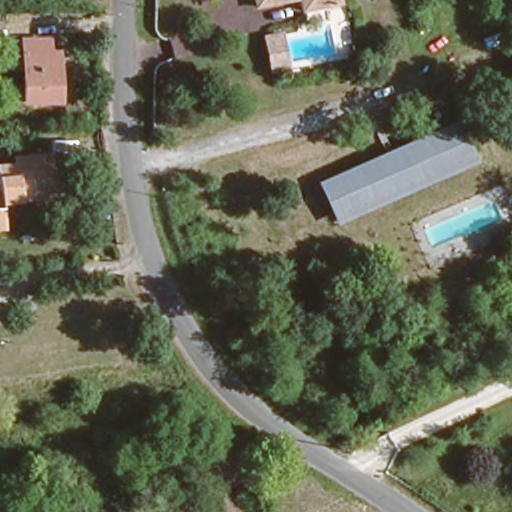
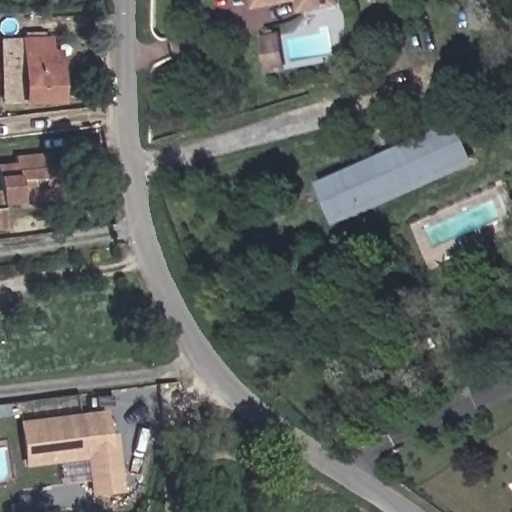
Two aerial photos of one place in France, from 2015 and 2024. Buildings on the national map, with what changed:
unchanged [(257,9),(255,0),(296,0),(257,9)]
unchanged [(310,9),(308,0),(340,0),(340,2),(310,9)]
unchanged [(15,101),(16,33),(48,31),(48,48),(56,49),(55,99),(15,101)]
unchanged [(455,118),(474,163),(329,226),(311,181),(455,118)]
unchanged [(15,195),(0,198),(0,169),(6,167),(5,154),(42,147),(48,181),(51,199),(17,205),(15,195)]
unchanged [(0,230),(0,219),(2,230),(0,230)]
new [(86,459),(25,467),(19,421),(106,410),(110,436),(116,435),(124,493),(91,497),(86,459)]

